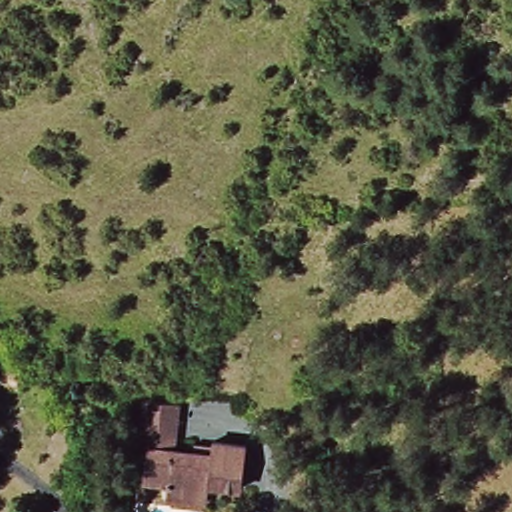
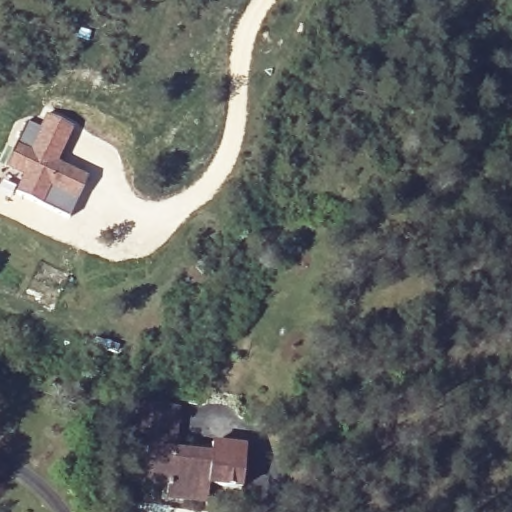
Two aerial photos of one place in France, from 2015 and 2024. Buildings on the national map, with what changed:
new [(27,121),(40,127),(47,112),(76,125),(58,161),(88,176),(70,218),(14,193),(21,179),(4,170),(27,121)]
unchanged [(147,469),(153,432),(147,430),(150,404),(184,410),(180,436),(177,452),(214,460),(216,446),(248,452),(242,495),(209,492),(206,509),(169,501),(171,492),(145,486),(147,469)]

